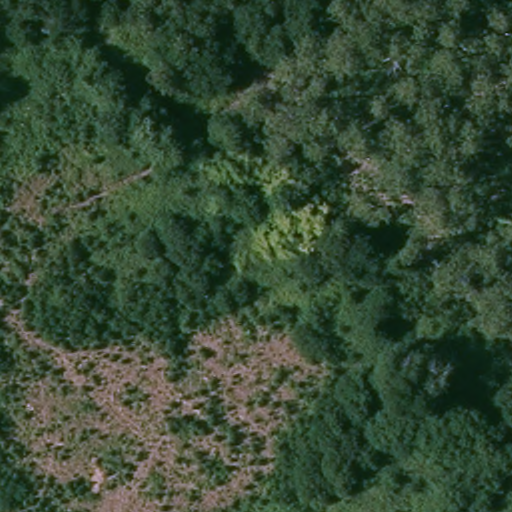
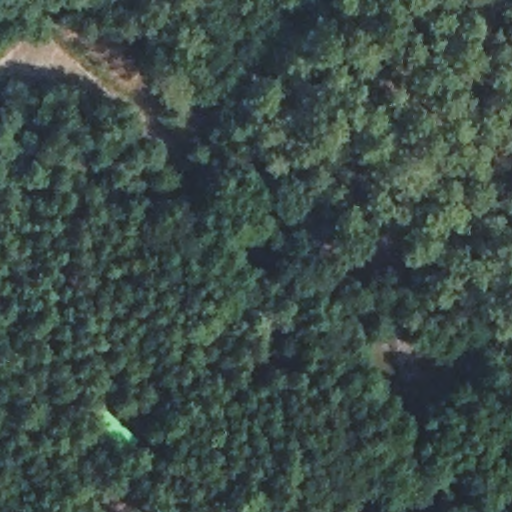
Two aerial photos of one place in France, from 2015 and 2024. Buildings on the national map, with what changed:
[]

